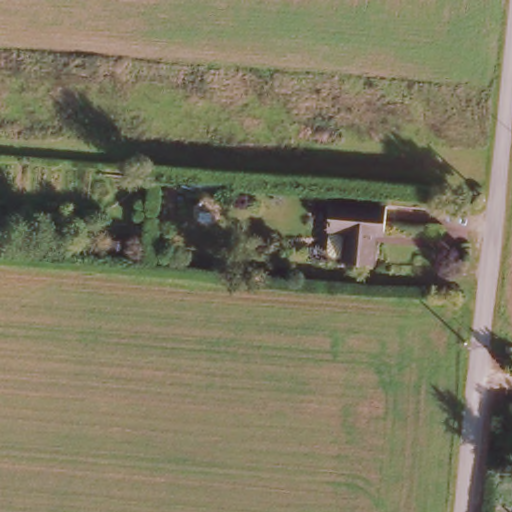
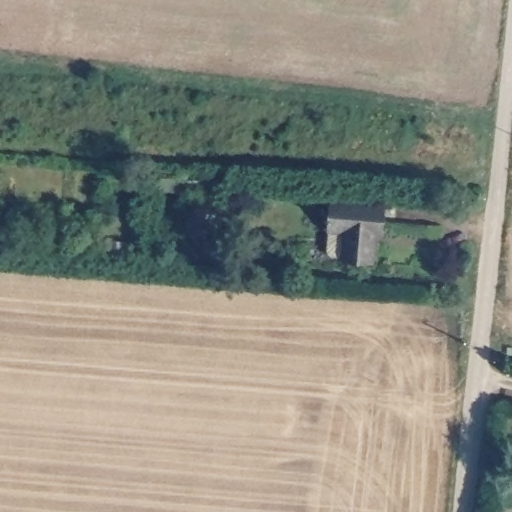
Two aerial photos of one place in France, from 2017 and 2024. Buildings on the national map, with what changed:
unchanged [(388,199),(386,228),(376,228),(374,257),(334,255),(329,243),(331,196),(388,199)]

